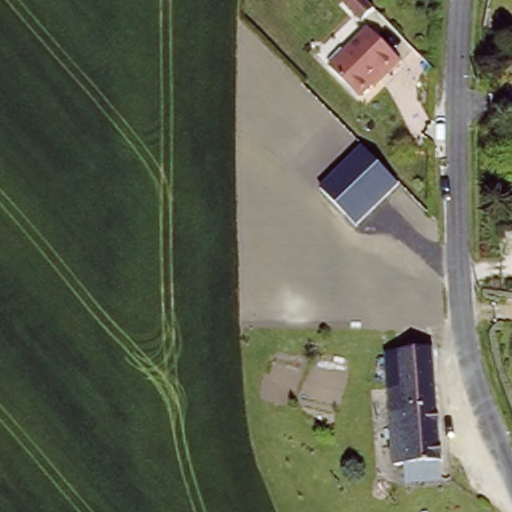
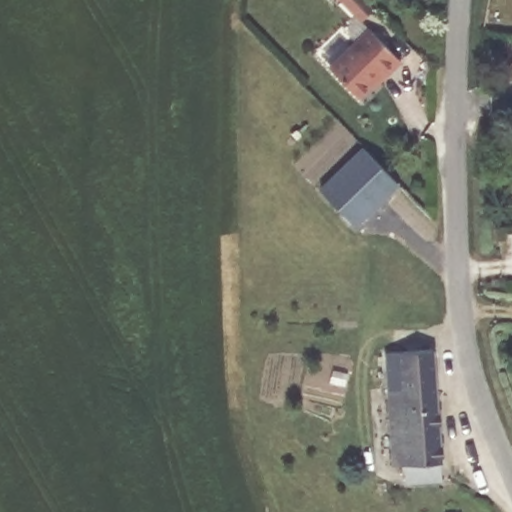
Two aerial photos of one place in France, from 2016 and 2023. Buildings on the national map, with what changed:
unchanged [(378,9),(366,21),(345,0),(369,0),(378,9)]
unchanged [(364,27),(400,65),(385,79),(382,76),(357,100),(324,65),(364,27)]
unchanged [(360,145),(400,186),(359,225),(320,187),(360,145)]
unchanged [(439,462),(437,462),(438,480),(402,482),(401,464),(390,465),(387,409),(386,387),(398,386),(399,386),(398,379),(397,351),(399,351),(432,349),(439,462)]

